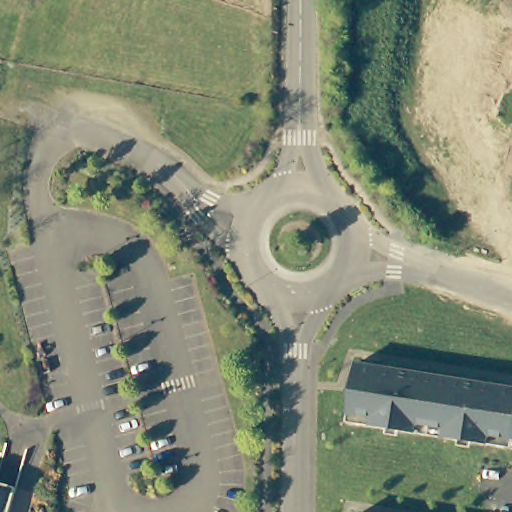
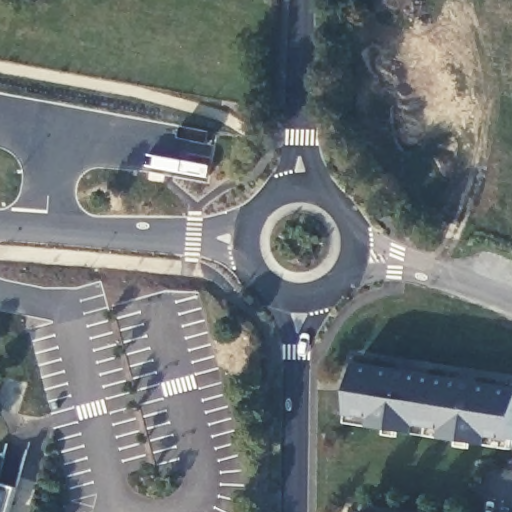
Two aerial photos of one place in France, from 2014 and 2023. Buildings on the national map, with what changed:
unchanged [(356,364),(512,388),(512,440),(490,436),(488,443),(488,444),(443,438),(444,436),(445,429),(418,425),(417,431),(416,433),(370,426),(371,423),(372,418),(348,414),(356,364)]
unchanged [(11,512),(0,512),(0,482),(18,487),(11,512)]

